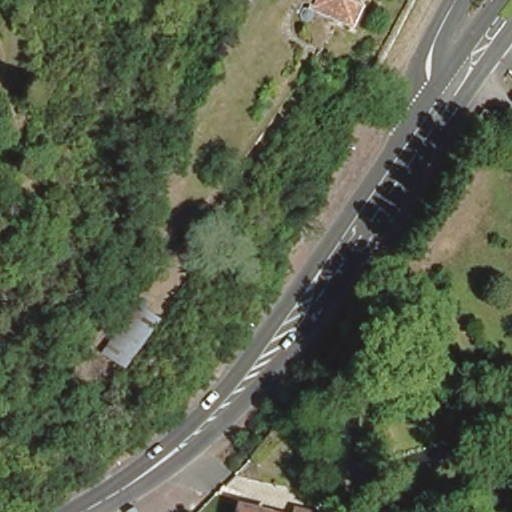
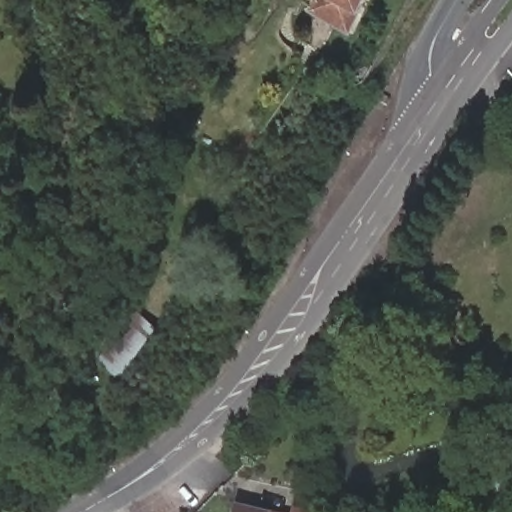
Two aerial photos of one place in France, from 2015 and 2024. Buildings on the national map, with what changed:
unchanged [(303,0),(355,0),(342,24),(302,1),(303,0)]
unchanged [(496,118),(488,131),(476,123),(484,110),(496,118)]
unchanged [(142,318),(162,332),(131,377),(110,363),(142,318)]
unchanged [(246,512),(240,512),(240,511),(246,512)]

